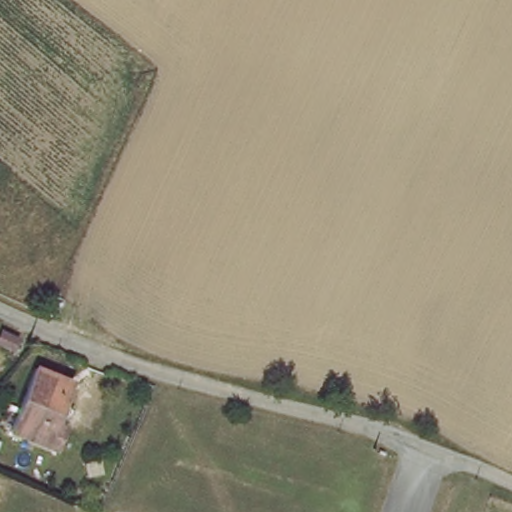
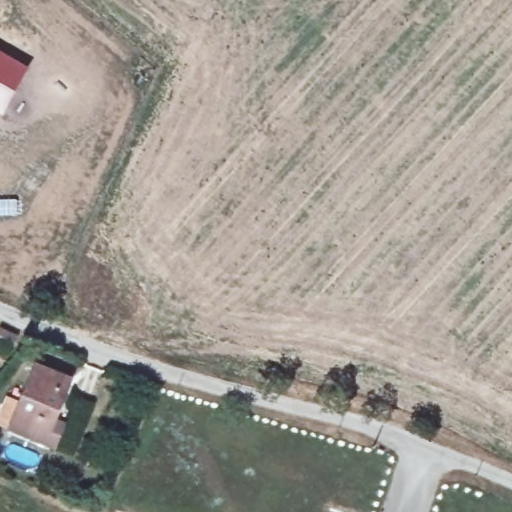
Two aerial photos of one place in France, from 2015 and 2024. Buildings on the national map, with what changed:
new [(3,115),(0,113),(0,47),(30,65),(3,115)]
unchanged [(10,346),(0,341),(0,334),(5,327),(17,336),(10,346)]
unchanged [(10,430),(37,367),(68,380),(52,421),(61,427),(53,448),(10,430)]

